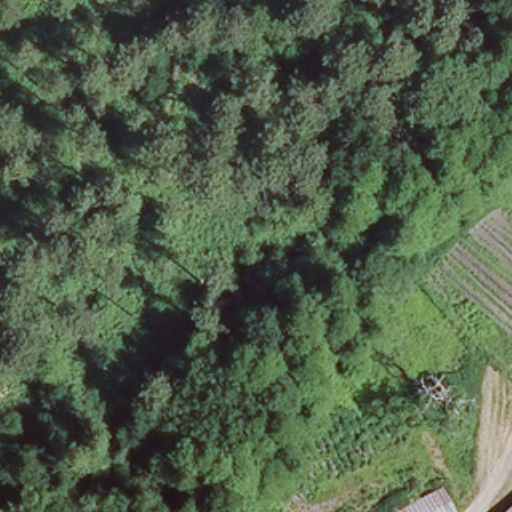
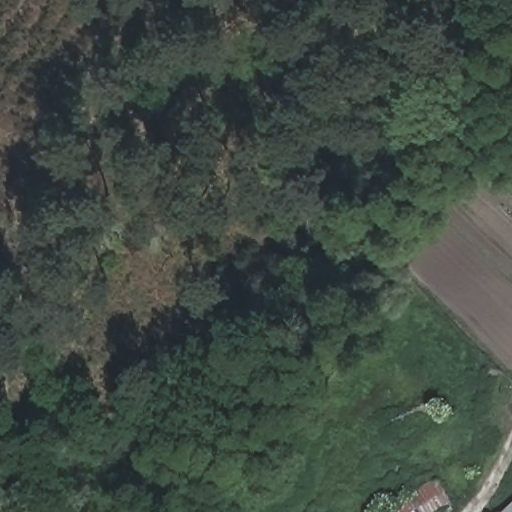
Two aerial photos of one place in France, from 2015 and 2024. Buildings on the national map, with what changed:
unchanged [(452,512),(392,512),(440,487),(454,511),(452,512)]
unchanged [(512,512),(502,512),(512,503),(512,512)]
unchanged [(381,504),(387,512),(370,512),(369,511),(381,504)]

